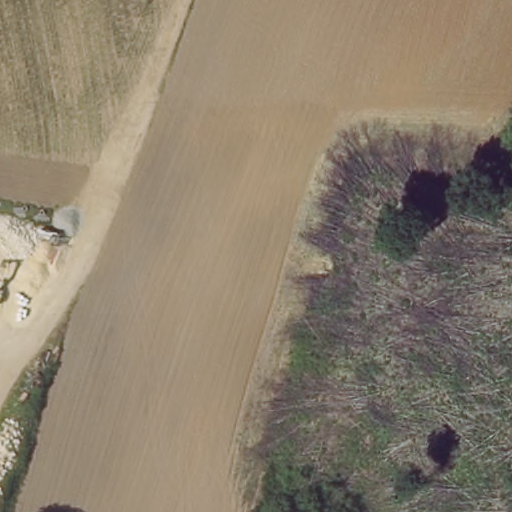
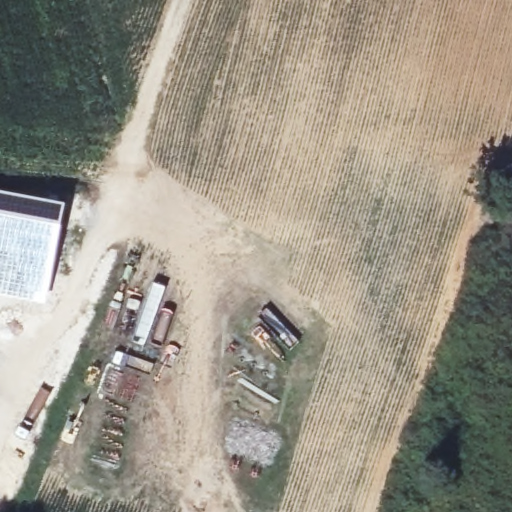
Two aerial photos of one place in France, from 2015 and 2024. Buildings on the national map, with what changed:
new [(66,204),(47,307),(0,297),(0,191),(66,204)]

